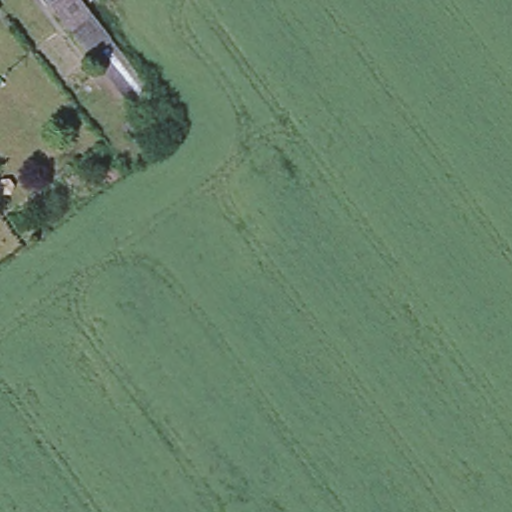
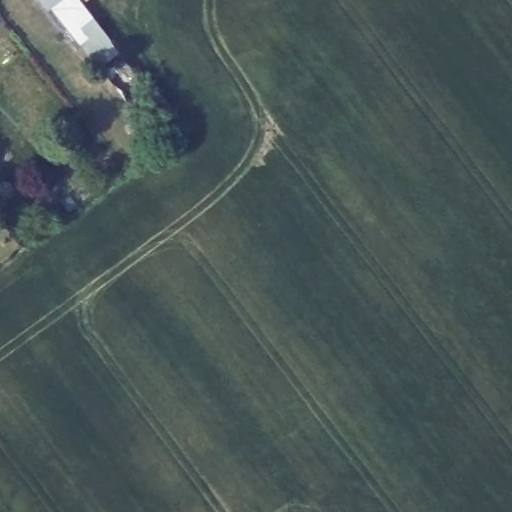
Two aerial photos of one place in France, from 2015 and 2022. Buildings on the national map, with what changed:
unchanged [(127,106),(47,7),(41,0),(82,0),(150,88),(127,106)]

